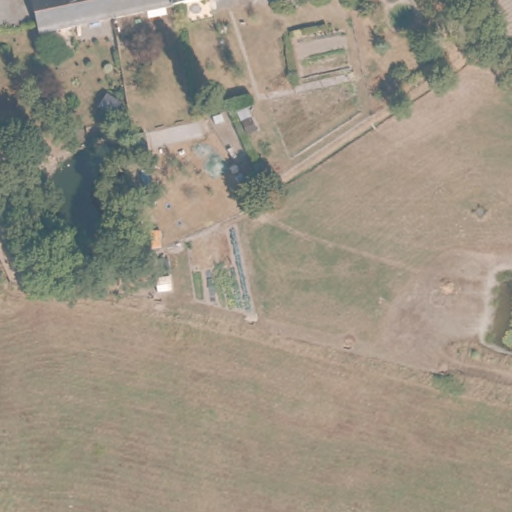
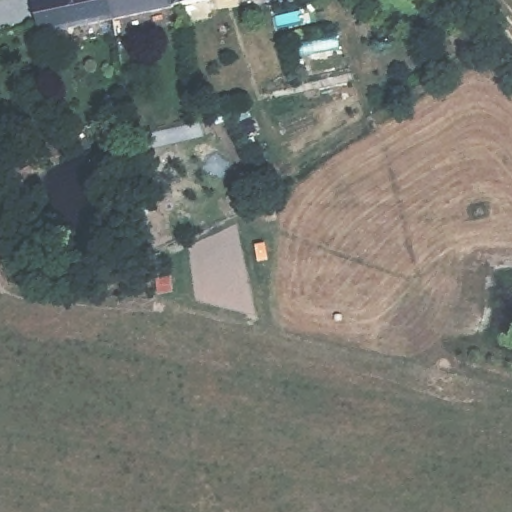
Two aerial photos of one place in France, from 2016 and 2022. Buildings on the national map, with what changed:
unchanged [(44,36),(38,0),(121,0),(125,21),(44,36)]
unchanged [(183,11),(137,19),(125,21),(121,0),(183,0),(183,11)]
unchanged [(219,4),(183,11),(183,0),(219,0),(219,4)]
unchanged [(250,3),(249,0),(270,0),(250,3)]

